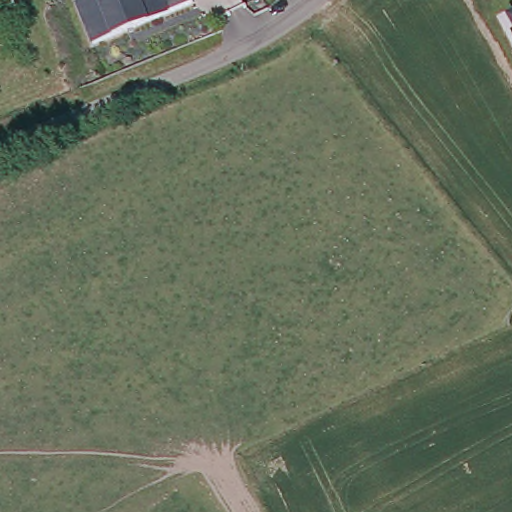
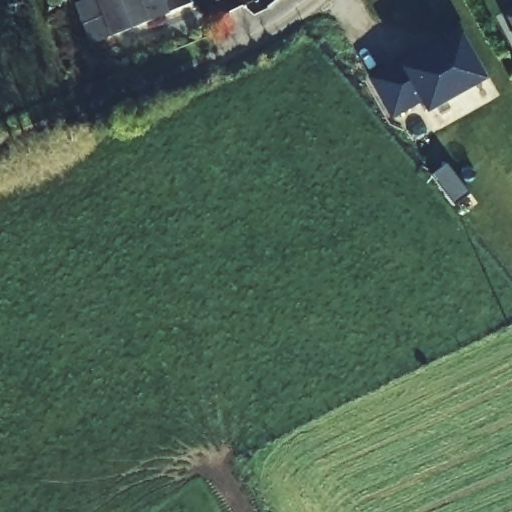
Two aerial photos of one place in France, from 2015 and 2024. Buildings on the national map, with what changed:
unchanged [(77,0),(179,0),(93,36),(77,0)]
unchanged [(512,8),(512,24),(505,12),(512,8)]
new [(368,77),(429,42),(434,49),(462,33),(488,79),(428,112),(423,102),(393,120),(368,77)]

